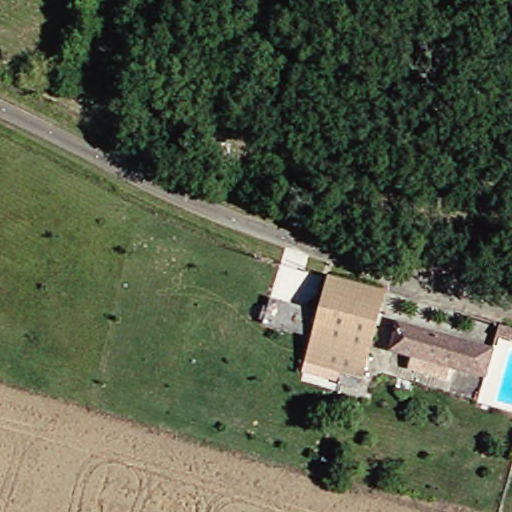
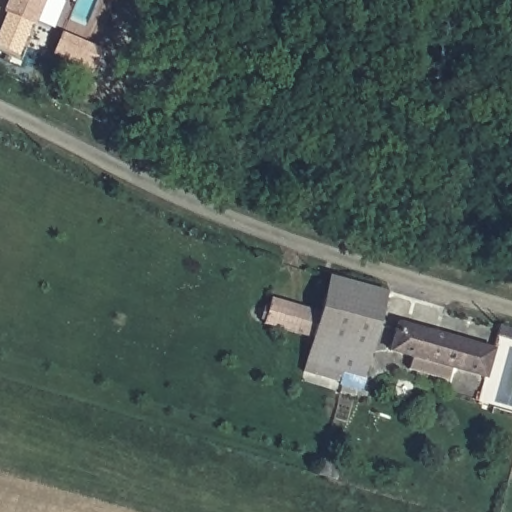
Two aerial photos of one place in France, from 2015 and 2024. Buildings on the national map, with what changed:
new [(5,11),(10,0),(46,0),(36,24),(5,11)]
new [(18,55),(0,48),(0,24),(5,11),(32,22),(18,55)]
new [(91,75),(50,57),(60,32),(102,50),(91,75)]
unchanged [(322,350),(323,345),(313,341),(316,327),(312,326),(317,310),(326,270),(393,290),(377,362),(322,350)]
unchanged [(317,310),(312,326),(316,327),(313,341),(270,327),(277,298),(317,310)]
unchanged [(404,358),(412,329),(492,347),(485,375),(404,358)]
unchanged [(371,391),(304,375),(313,341),(323,345),(322,350),(377,362),(371,391)]
demolished [(163,463),(180,468),(175,484),(159,479),(163,463)]

